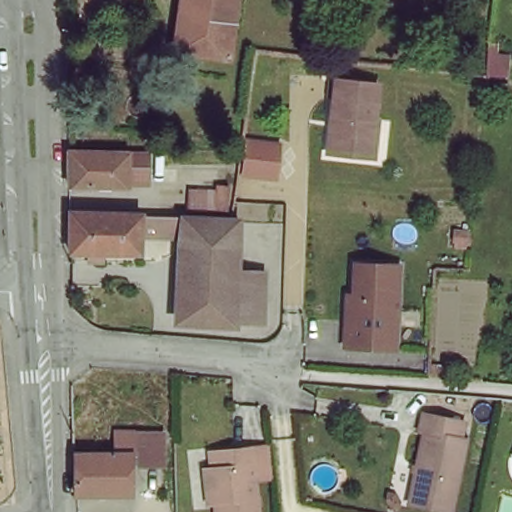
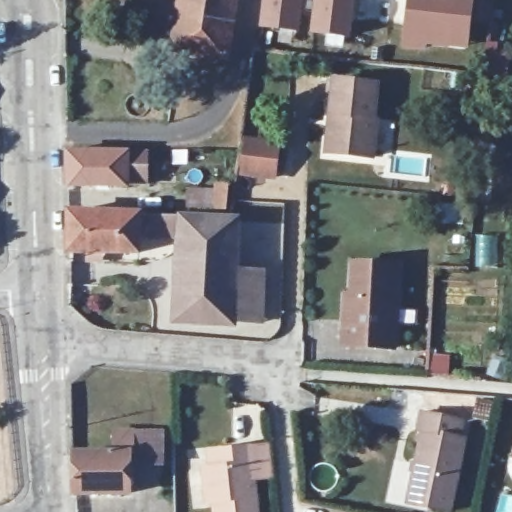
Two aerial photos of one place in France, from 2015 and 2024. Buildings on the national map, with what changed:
unchanged [(232,31),(228,60),(181,52),(183,28),(186,0),(235,0),(232,31)]
new [(263,0),(305,0),(302,33),(260,29),(263,0)]
new [(314,0),(355,0),(352,39),(311,34),(314,0)]
new [(409,0),(474,0),(467,49),(427,44),(427,52),(403,49),(409,0)]
unchanged [(329,117),(332,98),(327,97),(330,82),(376,88),(372,122),(376,123),(370,160),(333,155),(324,153),(329,117)]
unchanged [(276,141),(272,177),(242,176),(246,140),(276,141)]
unchanged [(125,150),(130,149),(151,149),(150,184),(129,185),(68,185),(67,174),(67,151),(125,150)]
unchanged [(220,193),(237,195),(235,210),(217,207),(220,193)]
unchanged [(74,238),(73,217),(110,217),(114,217),(143,218),(143,255),(74,254),(74,238)]
unchanged [(243,318),(193,319),(193,218),(223,219),(237,219),(243,219),(243,267),(243,318)]
unchanged [(243,267),(268,266),(269,317),(243,318),(243,267)]
unchanged [(352,268),(394,269),(391,350),(344,348),(346,299),(350,299),(352,268)]
unchanged [(425,432),(421,432),(425,414),(465,421),(462,438),(467,440),(453,512),(440,512),(431,509),(413,506),(414,495),(425,432)]
unchanged [(167,415),(169,466),(133,466),(133,499),(72,499),(72,451),(114,450),(113,430),(146,428),(146,417),(167,415)]
unchanged [(208,471),(206,453),(250,448),(268,445),(272,478),(254,481),(257,512),(205,512),(201,471),(208,471)]

